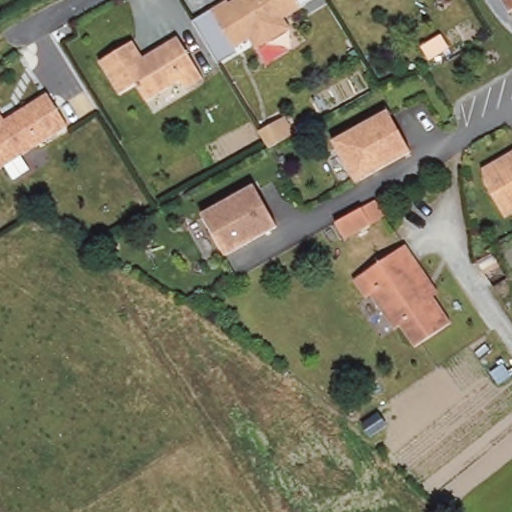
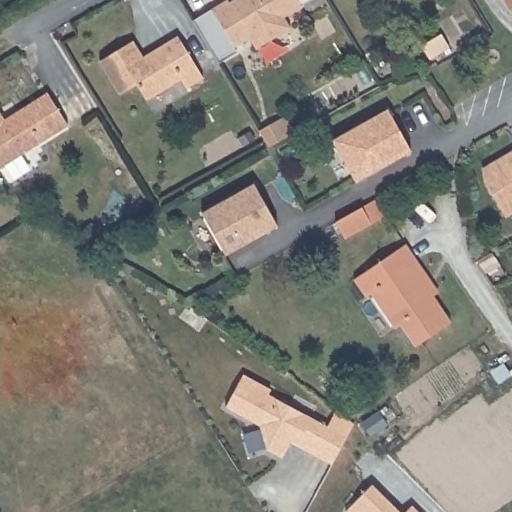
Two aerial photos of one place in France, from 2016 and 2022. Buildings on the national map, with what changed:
unchanged [(227,0),(228,1),(229,0),(298,0),(300,5),(233,46),(210,8),(223,0),(227,0)]
unchanged [(126,40),(146,73),(182,52),(197,77),(179,87),(174,78),(139,100),(129,83),(114,92),(94,60),(126,40)]
unchanged [(0,123),(0,124),(20,111),(33,104),(44,97),(53,112),(64,130),(0,170),(0,123)]
unchanged [(398,104),(421,146),(366,177),(343,135),(398,104)]
unchanged [(278,121),(287,135),(265,147),(257,132),(278,121)]
unchanged [(506,216),(487,182),(485,167),(512,152),(512,212),(506,216)]
unchanged [(264,179),(288,221),(235,250),(212,209),(264,179)]
unchanged [(371,202),(380,219),(340,241),(330,225),(371,202)]
unchanged [(420,342),(406,320),(401,324),(377,290),(372,293),(359,275),(410,240),(423,258),(443,287),(438,291),(456,317),(420,342)]
unchanged [(501,267),(486,274),(479,261),(493,253),(501,267)]
new [(243,375),(296,403),(294,408),(347,437),(333,464),(291,442),(283,458),(268,450),(260,426),(226,408),(243,375)]
new [(402,512),(351,512),(346,506),(374,481),(402,512)]
new [(412,503),(420,512),(403,512),(412,503)]

